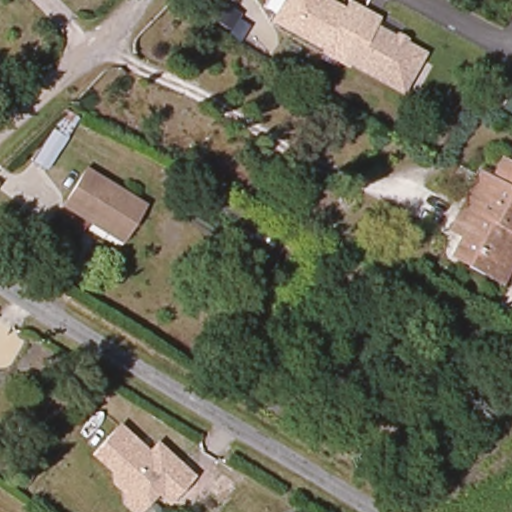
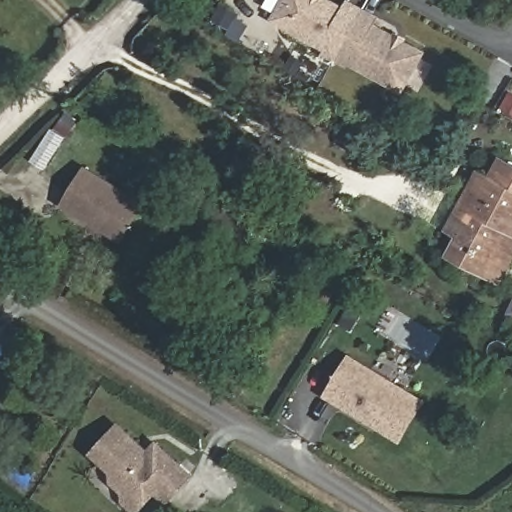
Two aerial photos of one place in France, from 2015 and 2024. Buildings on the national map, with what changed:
unchanged [(343,15),(347,8),(358,14),(374,23),(370,30),(420,58),(399,95),(333,58),(272,24),(285,0),(316,0),(343,15)]
unchanged [(33,162),(54,125),(59,117),(74,124),(69,132),(46,171),(33,162)]
unchanged [(463,263),(448,255),(457,239),(444,233),(468,190),(477,174),(489,179),(499,160),(512,167),(512,263),(501,283),(463,263)]
unchanged [(86,173),(143,206),(123,240),(65,206),(86,173)]
new [(350,358),(423,402),(399,439),(327,395),(350,358)]
unchanged [(196,475),(169,506),(156,495),(142,512),(132,512),(121,504),(121,493),(111,486),(112,474),(89,455),(118,422),(149,449),(155,441),(196,475)]

